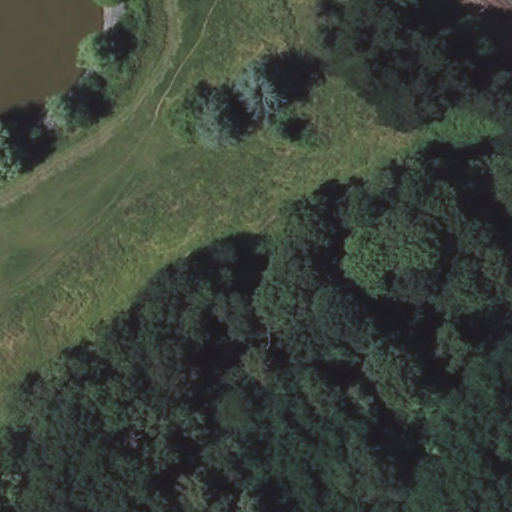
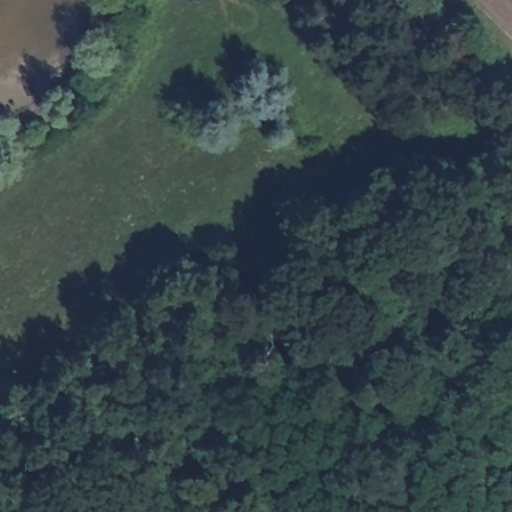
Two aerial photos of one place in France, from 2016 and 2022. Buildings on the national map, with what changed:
[]

